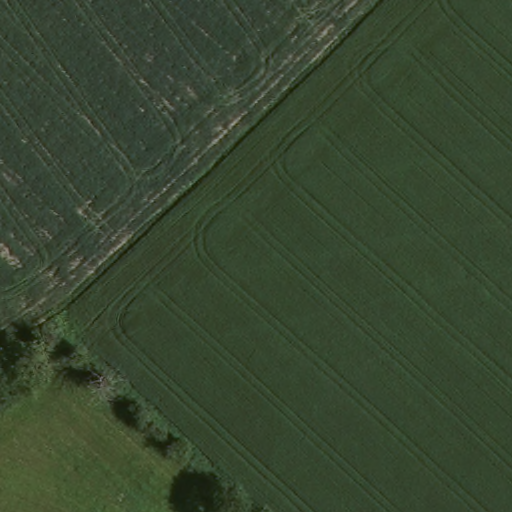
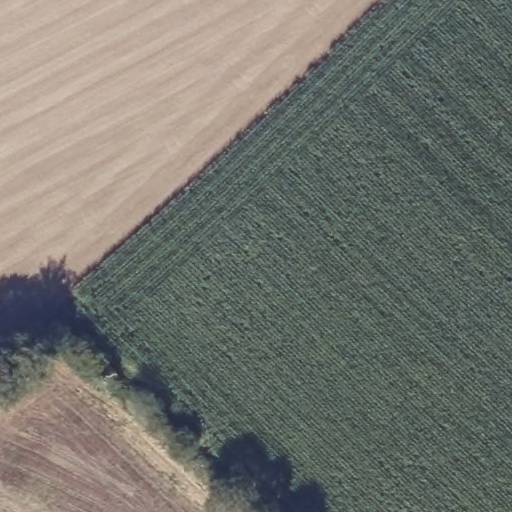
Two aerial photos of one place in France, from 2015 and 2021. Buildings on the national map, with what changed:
[]

